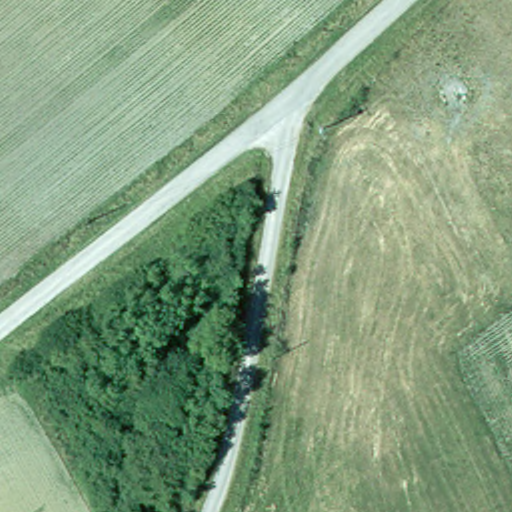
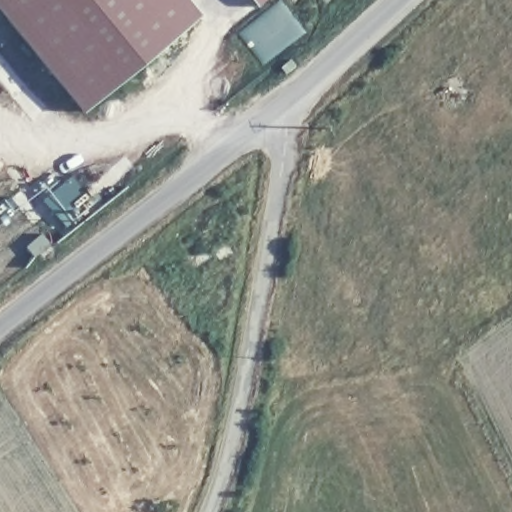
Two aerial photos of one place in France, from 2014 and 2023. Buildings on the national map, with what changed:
new [(200,15),(81,113),(0,13),(0,0),(187,0),(200,15)]
new [(257,5),(253,0),(263,0),(257,5)]

